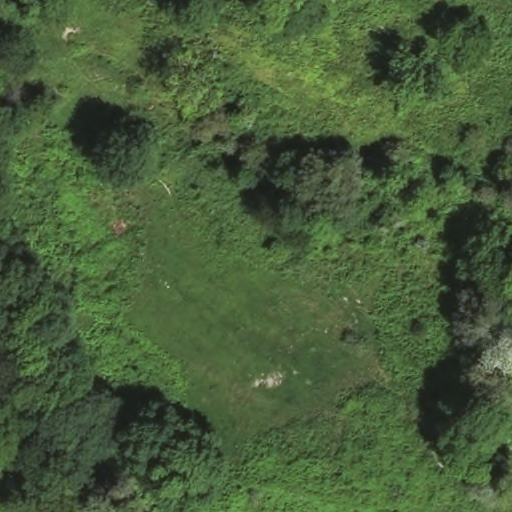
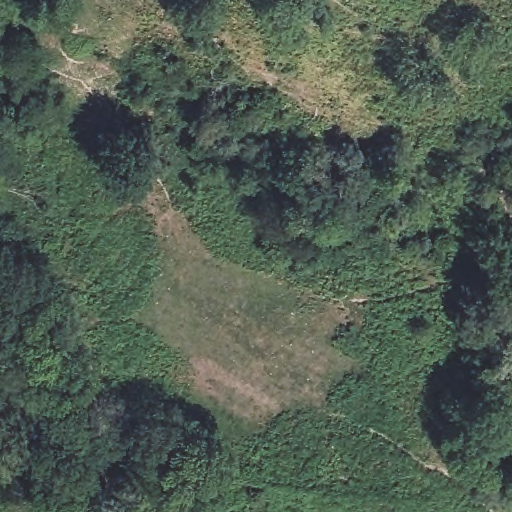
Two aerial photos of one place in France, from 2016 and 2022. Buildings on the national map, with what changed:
[]

